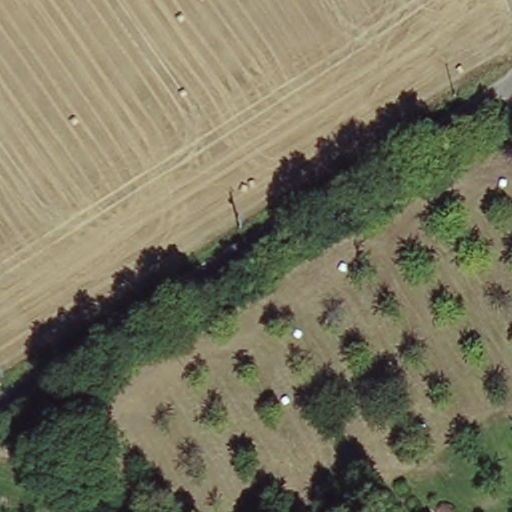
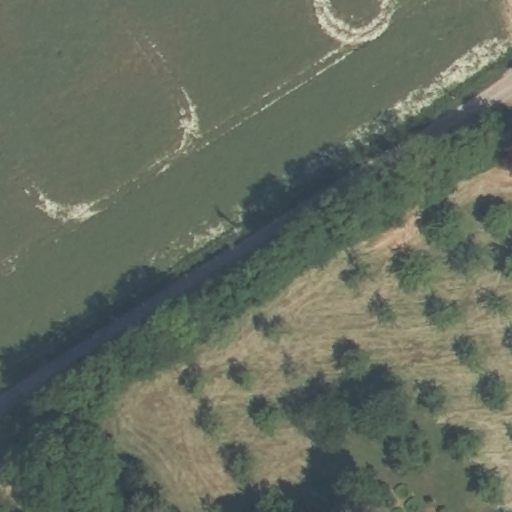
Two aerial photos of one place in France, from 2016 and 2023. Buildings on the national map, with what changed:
unchanged [(425,512),(412,512),(422,506),(425,512)]

